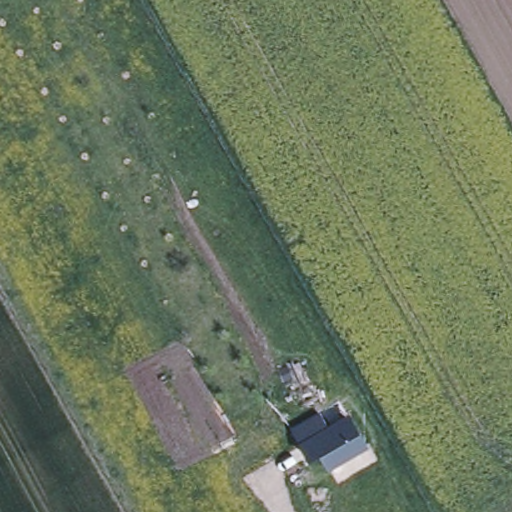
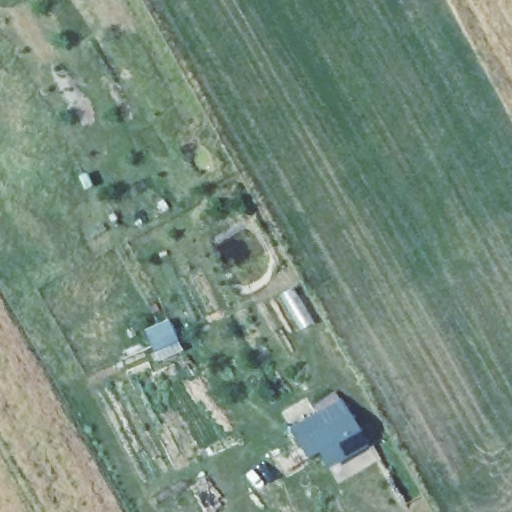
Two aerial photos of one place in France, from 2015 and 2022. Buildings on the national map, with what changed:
unchanged [(351,422),(365,446),(331,467),(317,443),(351,422)]

